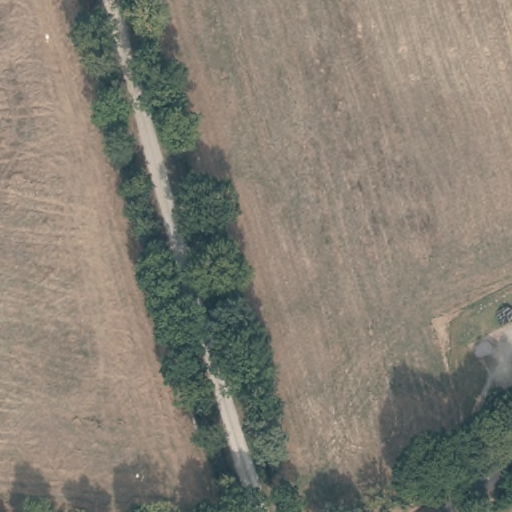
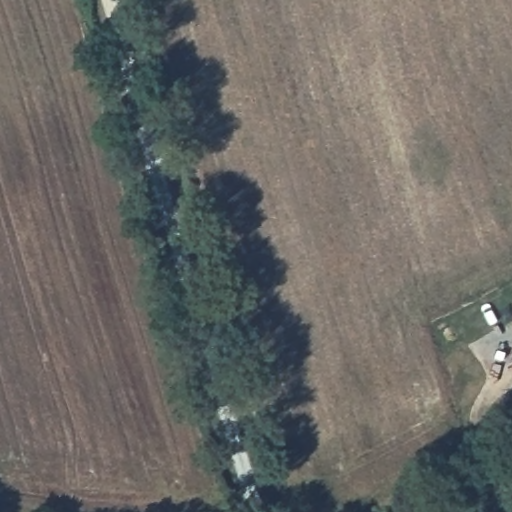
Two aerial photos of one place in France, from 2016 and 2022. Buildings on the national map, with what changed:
unchanged [(512,362),(512,367),(510,363),(512,362)]
unchanged [(493,398),(512,387),(512,422),(508,424),(493,398)]

